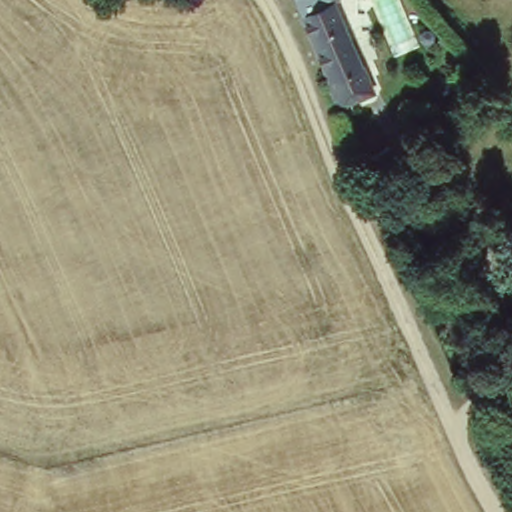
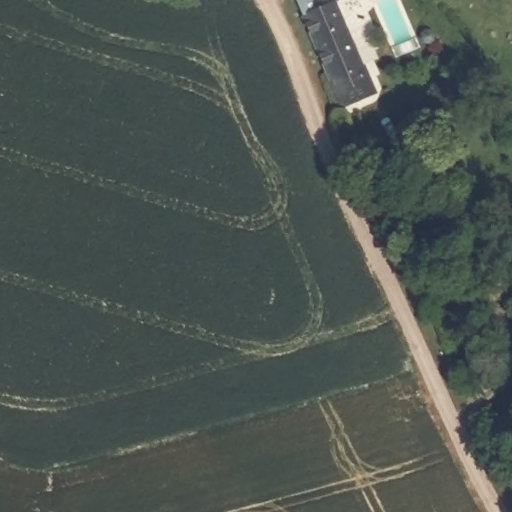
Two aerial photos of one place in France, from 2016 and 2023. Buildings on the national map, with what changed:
unchanged [(331,79),(328,69),(323,71),(296,0),(334,0),(356,59),(364,56),(371,76),(374,86),(365,89),(339,99),(337,100),(329,79),(331,79)]

